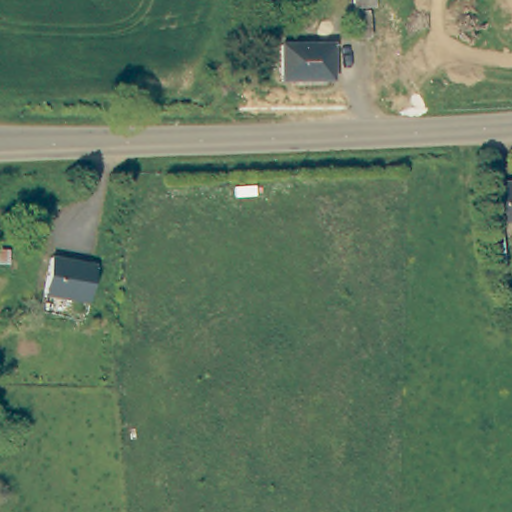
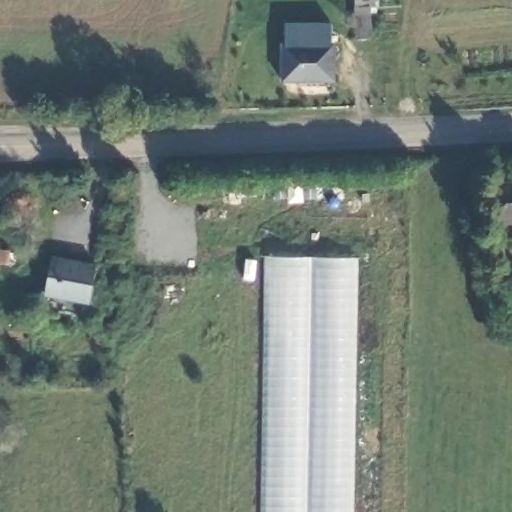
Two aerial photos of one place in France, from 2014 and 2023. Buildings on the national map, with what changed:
unchanged [(368,0),(368,3),(368,8),(359,8),(354,8),(354,4),(354,0),(368,0)]
unchanged [(355,16),(354,12),(359,12),(370,12),(370,16),(370,34),(370,39),(366,39),(355,39),(355,35),(355,16)]
unchanged [(282,81),(277,81),(277,76),(277,45),(323,45),(328,45),(328,49),(328,76),(328,80),(324,80),(282,81)]
unchanged [(502,186),(502,182),(506,182),(512,181),(512,224),(504,224),(502,186)]
unchanged [(48,295),(44,294),(45,290),(51,258),(55,259),(96,267),(90,299),(89,303),(85,302),(48,295)]
new [(380,512),(262,512),(263,258),(385,258),(380,512)]

